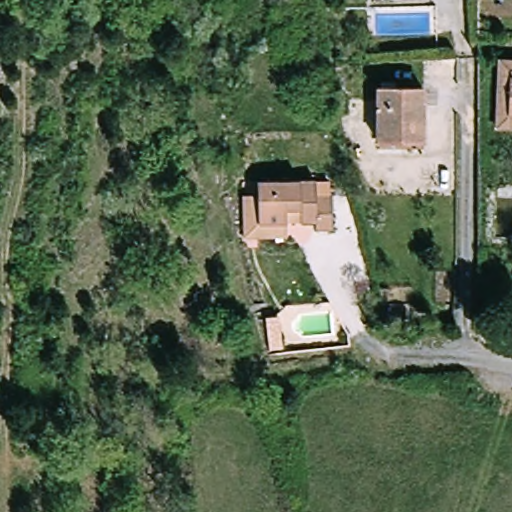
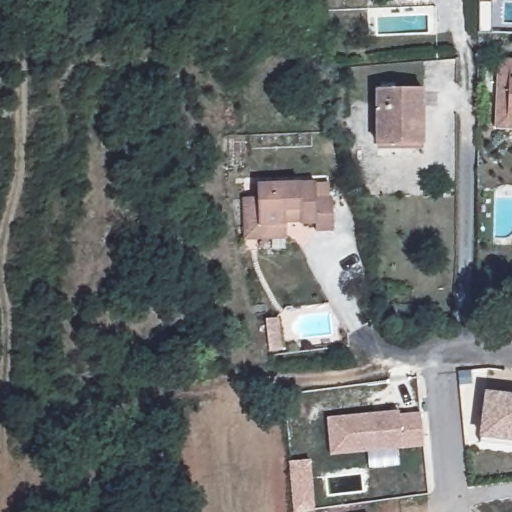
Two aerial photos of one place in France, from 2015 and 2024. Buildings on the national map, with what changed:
unchanged [(502,110),(505,56),(512,56),(512,126),(502,126),(502,110)]
unchanged [(378,144),(375,89),(421,87),(424,142),(378,144)]
unchanged [(292,240),(248,240),(247,196),(262,196),(262,182),(322,180),(322,197),(338,196),(339,231),(321,232),(320,224),(306,225),(291,225),(292,240)]
unchanged [(385,262),(400,260),(404,284),(389,286),(385,262)]
new [(485,389),(511,394),(512,394),(512,452),(477,446),(478,437),(484,394),(485,389)]
new [(329,418),(400,411),(400,416),(422,414),(425,446),(402,449),(332,455),(329,418)]
new [(369,454),(400,451),(402,469),(370,472),(369,454)]
new [(308,512),(293,512),(291,479),(290,463),(310,461),(311,477),(313,511),(308,512)]

